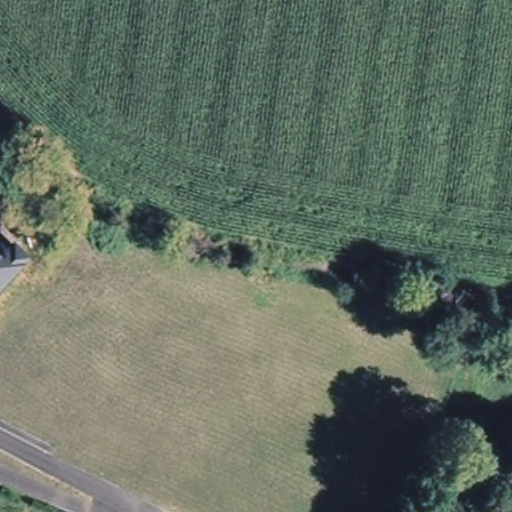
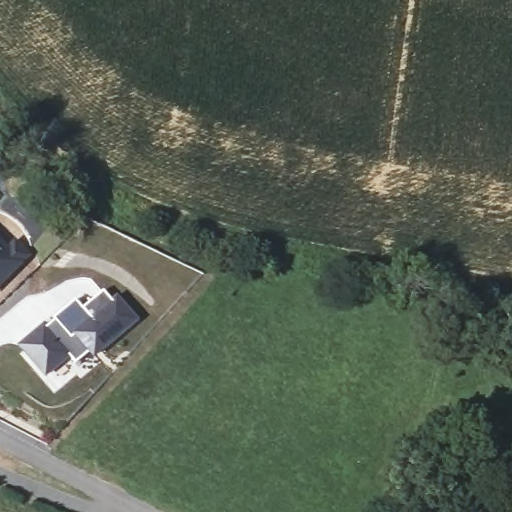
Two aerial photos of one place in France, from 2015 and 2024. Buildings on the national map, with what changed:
unchanged [(7,244),(14,238),(31,253),(0,287),(0,238),(7,244)]
new [(42,324),(47,327),(53,321),(51,318),(75,300),(83,307),(102,290),(112,300),(115,296),(137,320),(95,358),(89,353),(75,363),(68,355),(44,377),(16,347),(42,324)]

